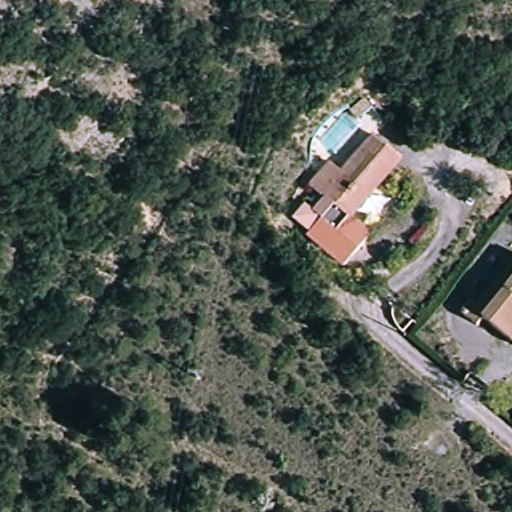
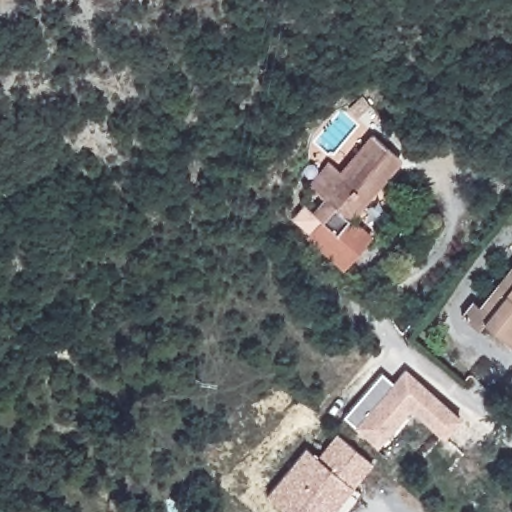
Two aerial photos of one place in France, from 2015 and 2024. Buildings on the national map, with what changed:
unchanged [(391,148),(400,155),(393,165),(354,216),(376,234),(349,267),(313,236),(338,206),(306,179),(323,157),(330,162),(343,172),(371,137),(373,135),(391,148)]
unchanged [(477,304),(512,260),(512,345),(481,320),(473,330),(457,316),(471,298),(477,304)]
new [(442,437),(410,410),(377,447),(344,416),(381,372),(393,382),(405,367),(461,417),(442,437)]
new [(335,433),(371,463),(352,487),(331,512),(286,512),(266,496),(305,448),(316,456),(335,433)]

